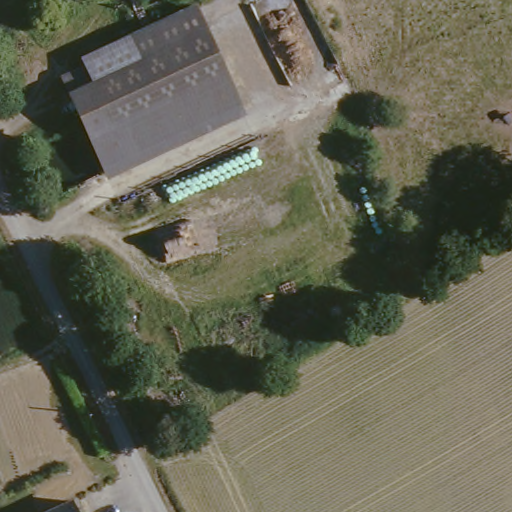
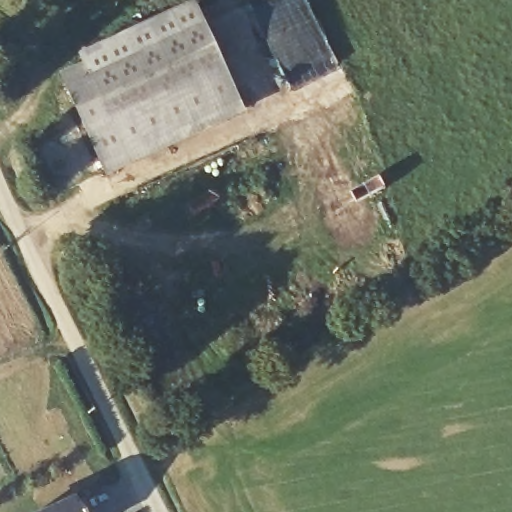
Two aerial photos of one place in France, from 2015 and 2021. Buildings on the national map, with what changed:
unchanged [(133,170),(97,90),(139,70),(130,46),(197,16),(246,116),(133,170)]
unchanged [(110,180),(67,84),(89,75),(97,90),(133,170),(110,180)]
unchanged [(64,501),(70,512),(42,512),(64,501)]

